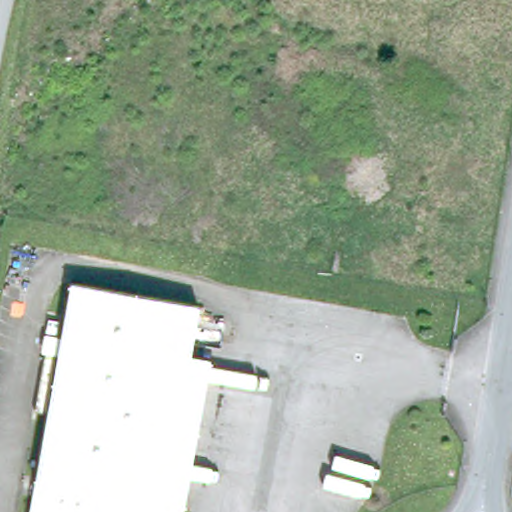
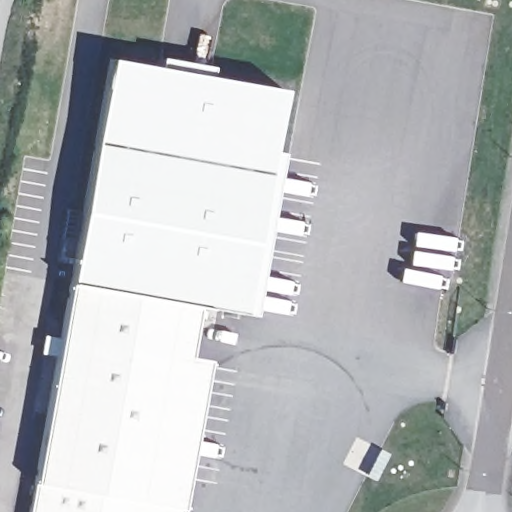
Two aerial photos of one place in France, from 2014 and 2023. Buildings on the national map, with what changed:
new [(108,56),(285,87),(242,310),(195,302),(68,280),(108,56)]
unchanged [(177,512),(25,512),(32,479),(57,340),(68,280),(195,302),(187,352),(160,501),(178,505),(177,512)]
unchanged [(178,505),(160,501),(187,352),(205,356),(198,393),(178,505)]

